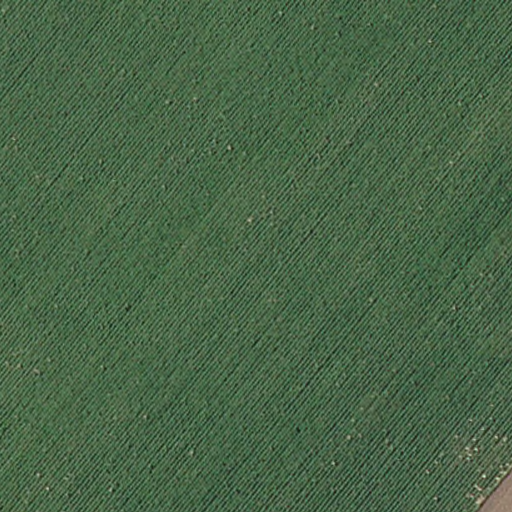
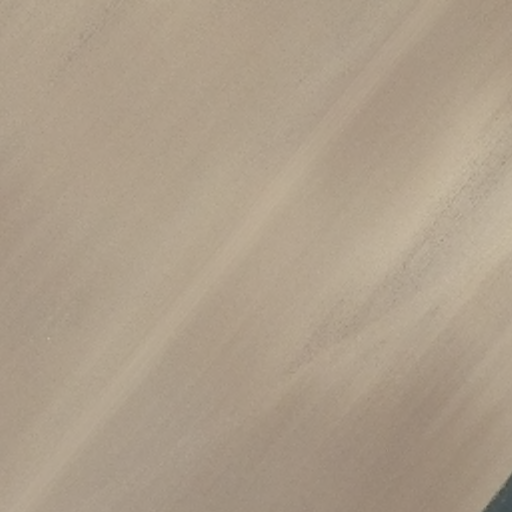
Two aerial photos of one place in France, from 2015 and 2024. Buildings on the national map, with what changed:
[]

